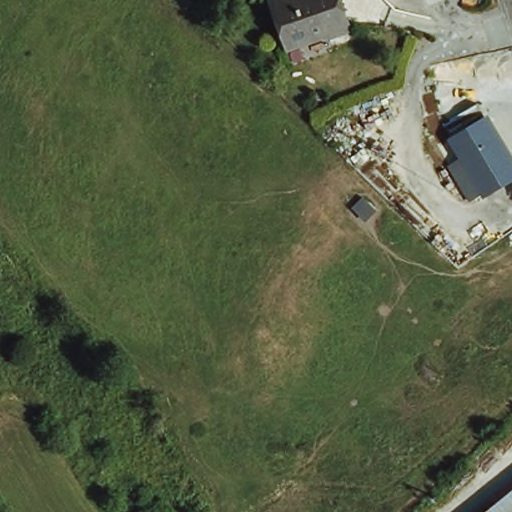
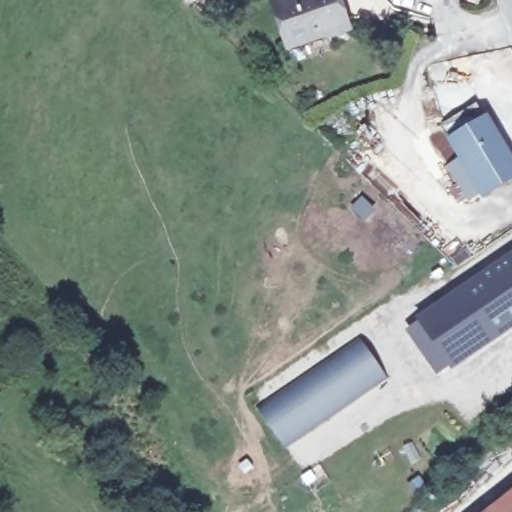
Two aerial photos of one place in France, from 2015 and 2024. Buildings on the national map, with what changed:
unchanged [(273,2),(280,0),(335,0),(344,23),(290,41),(273,2)]
unchanged [(478,200),(449,148),(438,131),(472,110),(482,129),(512,180),(512,181),(478,200)]
new [(512,252),(512,330),(452,371),(417,320),(512,252)]
new [(389,379),(285,449),(255,409),(359,338),(389,379)]
unchanged [(498,512),(512,502),(512,512),(498,512)]

